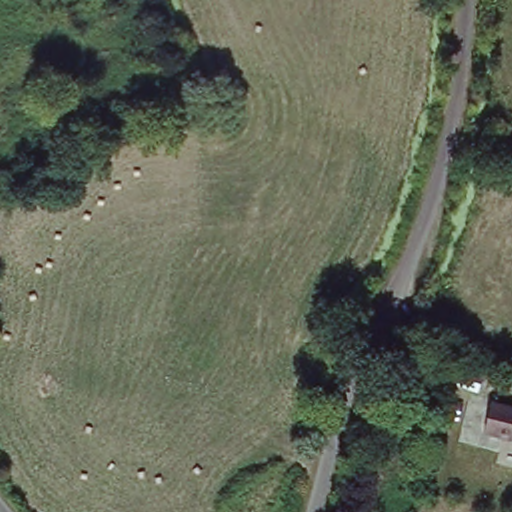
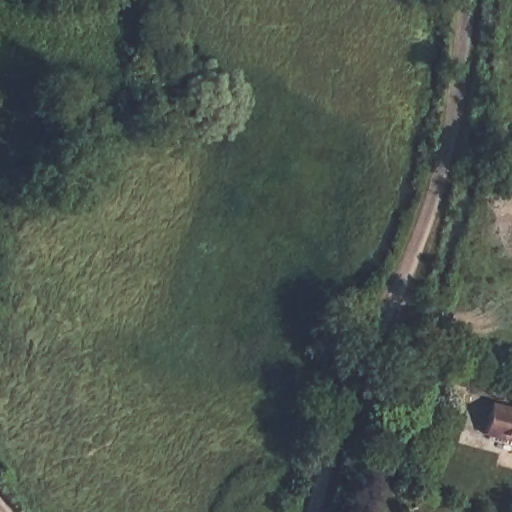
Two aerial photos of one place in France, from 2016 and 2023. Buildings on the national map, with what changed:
unchanged [(484,436),(491,408),(512,413),(512,442),(484,436)]

